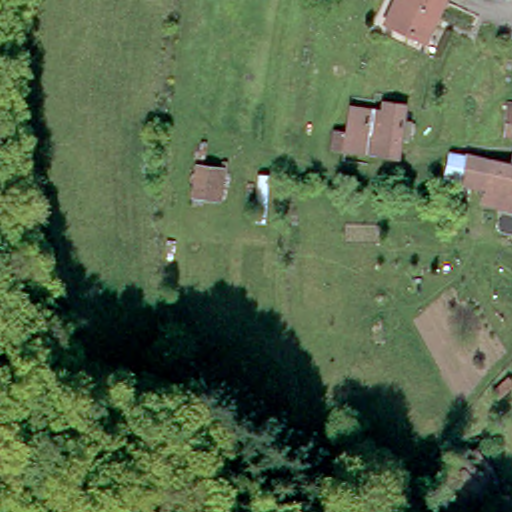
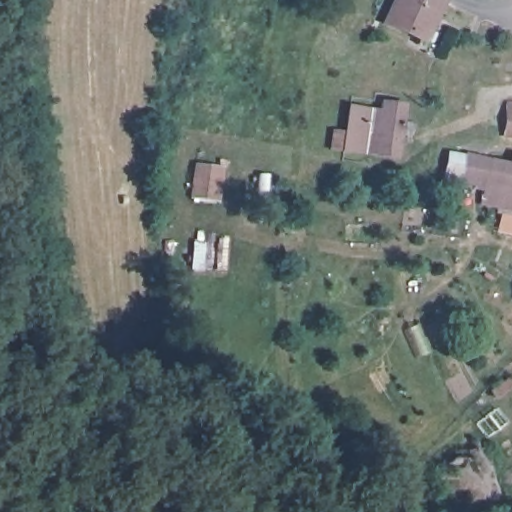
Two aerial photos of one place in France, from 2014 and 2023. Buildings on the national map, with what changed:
unchanged [(419,34),(381,17),(389,0),(436,0),(419,34)]
unchanged [(377,107),(378,98),(390,100),(399,101),(392,151),(359,148),(364,105),(372,106),(377,107)]
unchanged [(504,101),(512,102),(512,128),(501,127),(504,101)]
unchanged [(455,179),(440,176),(445,148),(461,152),(462,148),(487,154),(492,155),(507,158),(509,147),(512,148),(512,205),(478,197),(481,184),(462,180),(455,179)]
unchanged [(226,161),(222,202),(195,203),(197,160),(226,161)]
unchanged [(267,222),(254,221),(256,178),(269,178),(267,222)]

